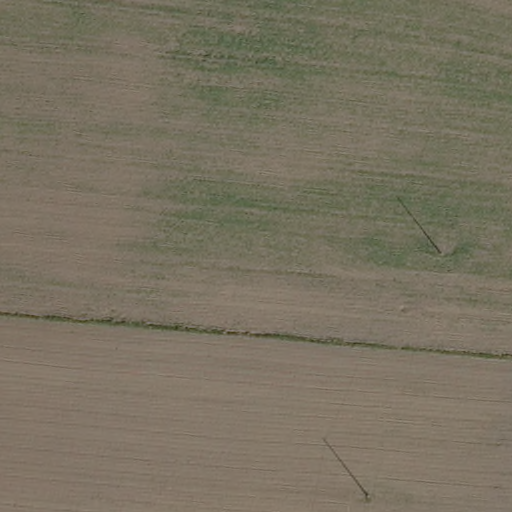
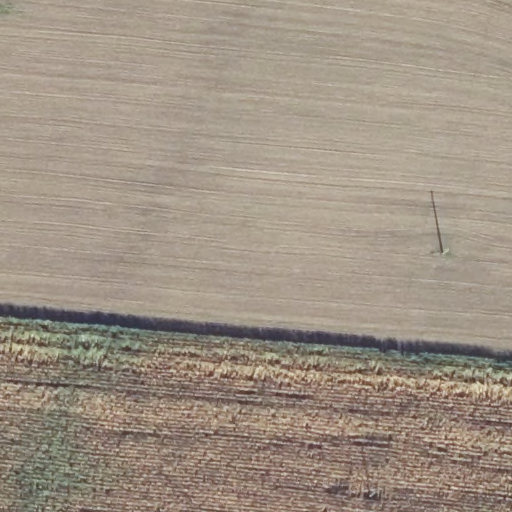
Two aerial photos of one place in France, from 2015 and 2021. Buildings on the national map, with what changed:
[]

